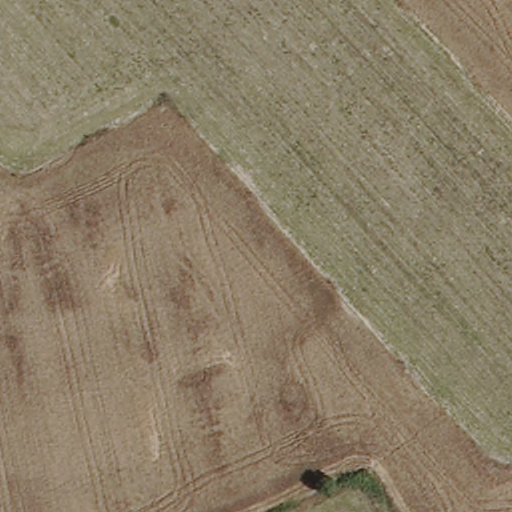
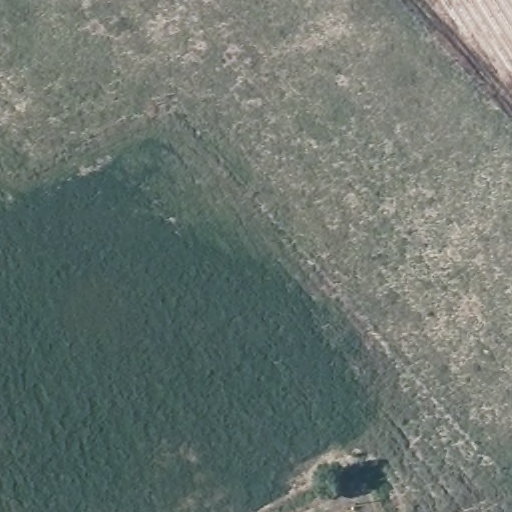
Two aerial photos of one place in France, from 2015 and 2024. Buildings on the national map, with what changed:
[]

